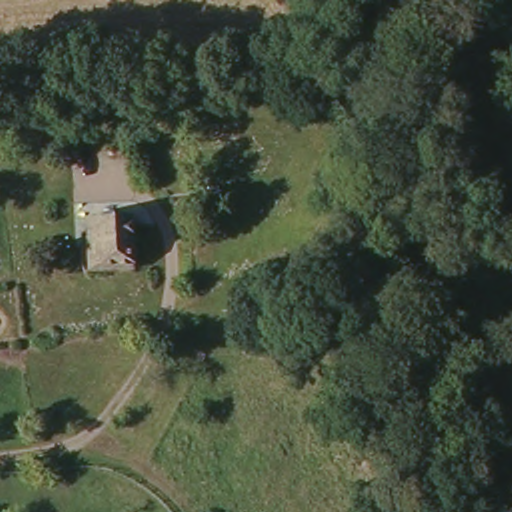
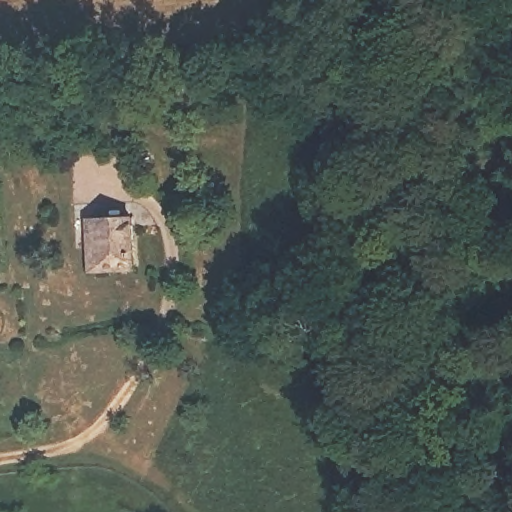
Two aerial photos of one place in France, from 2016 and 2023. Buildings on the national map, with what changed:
unchanged [(134,273),(90,276),(84,221),(129,218),(134,273)]

